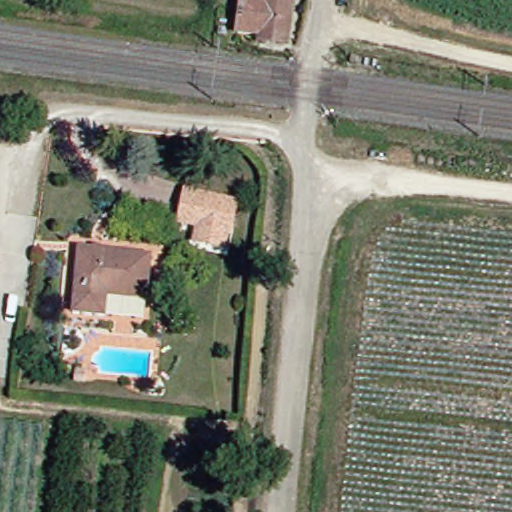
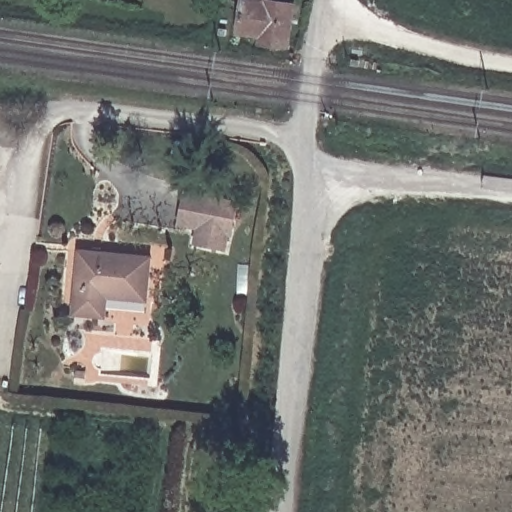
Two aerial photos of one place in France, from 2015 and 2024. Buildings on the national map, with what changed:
unchanged [(301,0),(296,43),(268,40),(268,31),(239,29),(244,0),(298,0),(301,0)]
unchanged [(216,224),(186,219),(189,203),(173,201),(178,170),(197,173),(223,177),(216,224)]
unchanged [(155,256),(154,296),(117,299),(115,314),(80,312),(85,253),(155,256)]
unchanged [(61,358),(52,357),(51,349),(61,349),(61,358)]

